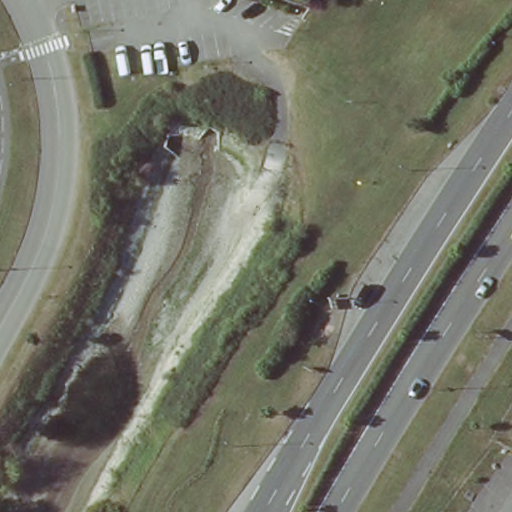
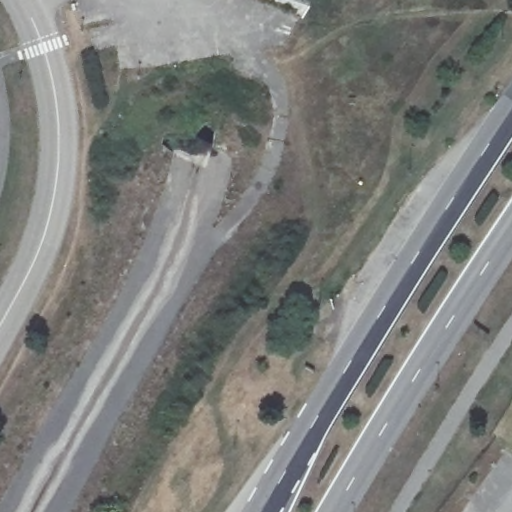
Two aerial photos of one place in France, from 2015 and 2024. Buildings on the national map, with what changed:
[]

